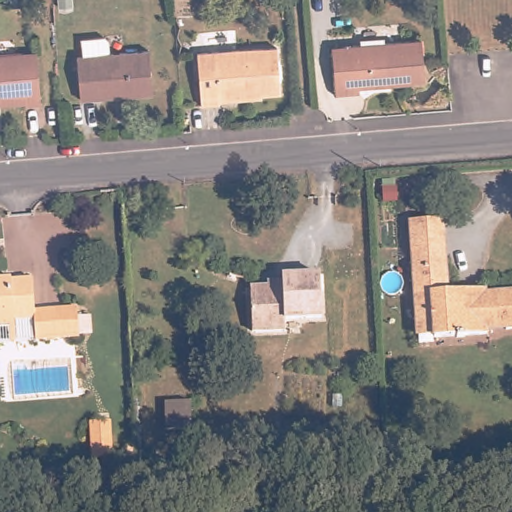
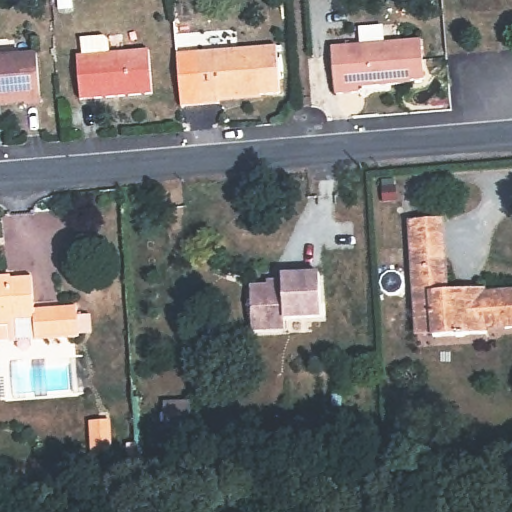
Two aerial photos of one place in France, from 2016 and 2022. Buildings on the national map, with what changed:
unchanged [(76,51),(81,50),(81,34),(103,33),(108,35),(109,49),(148,44),(152,89),(79,94),(76,51)]
unchanged [(332,44),(421,37),(424,77),(411,78),(411,81),(356,85),(356,89),(335,90),(332,44)]
unchanged [(201,47),(280,41),(285,89),(222,95),(222,99),(205,100),(201,47)]
unchanged [(36,49),(40,94),(23,95),(23,93),(0,94),(0,52),(36,49)]
unchanged [(410,244),(408,216),(445,214),(447,241),(410,244)]
unchanged [(410,244),(447,241),(449,288),(488,286),(488,289),(512,287),(512,321),(490,322),(490,327),(431,330),(415,330),(414,311),(410,244)]
unchanged [(0,325),(0,272),(15,271),(16,273),(36,272),(38,304),(64,303),(82,302),(82,311),(95,310),(96,328),(83,329),(83,331),(66,332),(39,334),(38,312),(19,313),(19,317),(19,324),(0,325)]
unchanged [(267,280),(281,280),(281,274),(319,273),(321,318),(284,319),(285,329),(250,330),(249,285),(267,285),(267,280)]
unchanged [(163,402),(189,401),(190,428),(164,429),(163,402)]
unchanged [(109,421),(109,432),(110,451),(90,452),(89,422),(99,422),(109,421)]
unchanged [(135,449),(136,461),(127,461),(126,439),(134,439),(135,449)]

